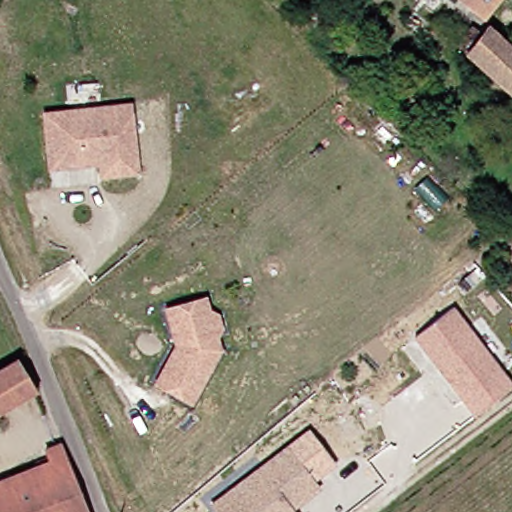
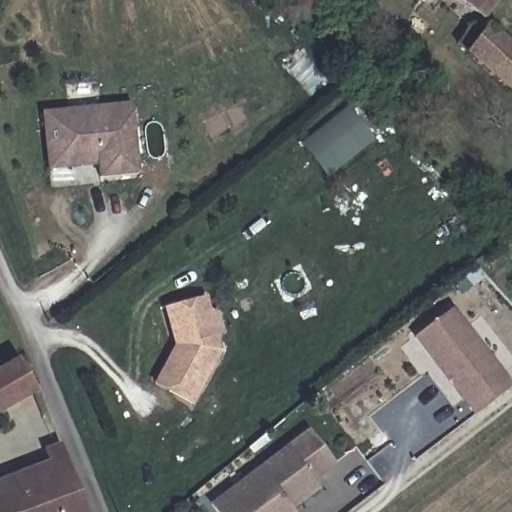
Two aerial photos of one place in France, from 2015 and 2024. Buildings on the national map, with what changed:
unchanged [(485,10),(471,0),(492,0),(485,10)]
unchanged [(460,41),(475,24),(484,32),(492,25),(512,42),(512,90),(471,51),(460,41)]
unchanged [(37,113),(127,104),(134,175),(95,177),(94,165),(44,170),(42,160),(37,113)]
new [(326,175),(302,143),(347,107),(372,137),(326,175)]
unchanged [(153,386),(174,348),(164,312),(204,301),(207,315),(216,318),(220,333),(214,341),(218,353),(189,405),(153,386)]
unchanged [(475,415),(415,336),(452,308),(512,386),(512,387),(501,395),(475,415)]
unchanged [(13,353),(36,387),(0,412),(0,362),(13,353)]
unchanged [(32,471),(29,464),(45,457),(42,449),(55,443),(84,512),(0,512),(0,485),(32,471)]
unchanged [(285,447),(316,489),(289,510),(291,512),(216,512),(209,503),(285,447)]

